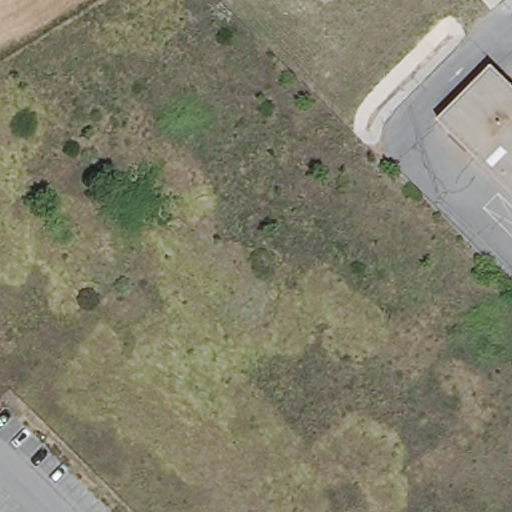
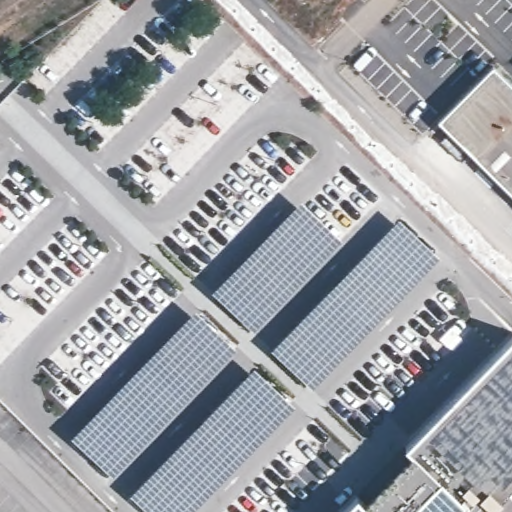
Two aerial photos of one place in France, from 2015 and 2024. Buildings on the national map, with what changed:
unchanged [(492,65),(512,85),(512,193),(438,118),(492,65)]
new [(342,239),(254,330),(214,289),(301,197),(342,239)]
new [(441,256),(314,386),(273,347),(397,216),(441,256)]
new [(236,348),(114,472),(73,436),(195,308),(236,348)]
new [(359,493),(365,500),(410,451),(406,445),(512,336),(512,483),(510,486),(512,487),(512,512),(341,512),(359,493)]
new [(296,404),(191,512),(152,512),(130,492),(252,366),(296,404)]

